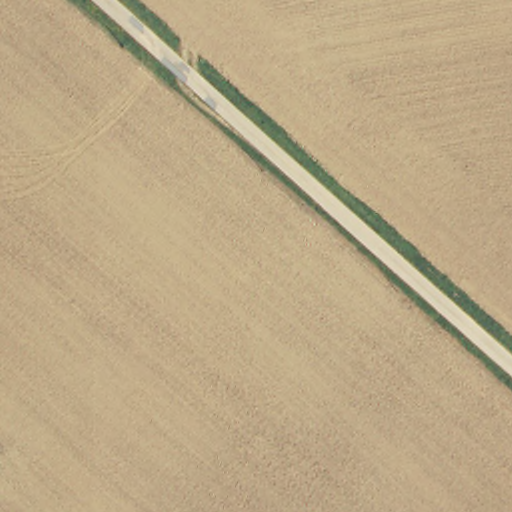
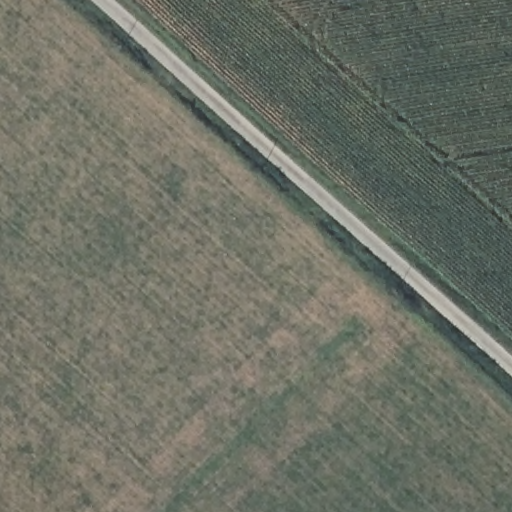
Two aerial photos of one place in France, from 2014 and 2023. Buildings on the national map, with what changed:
[]

